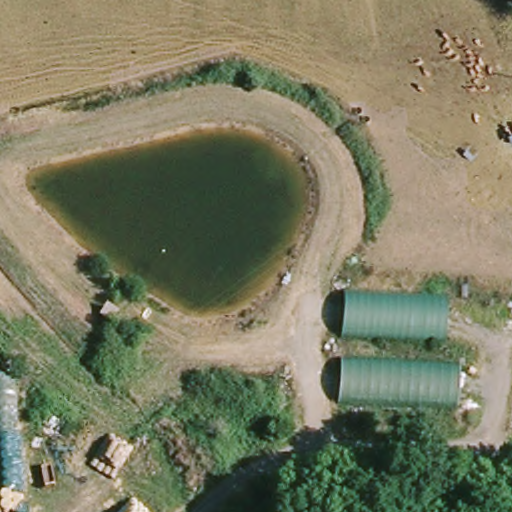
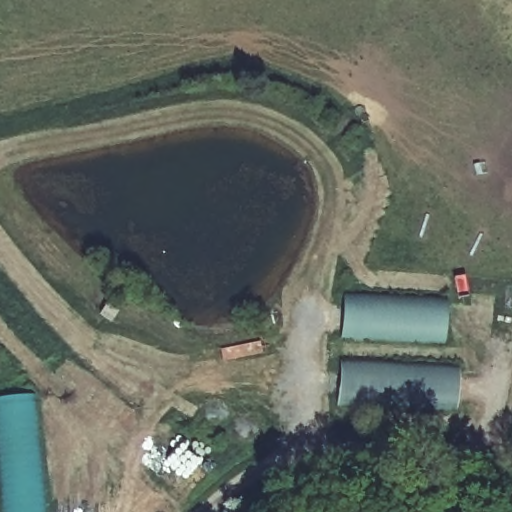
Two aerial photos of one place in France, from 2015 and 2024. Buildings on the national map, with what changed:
unchanged [(343,295),(445,300),(445,343),(342,337),(343,295)]
unchanged [(335,407),(338,365),(460,368),(457,414),(335,407)]
new [(0,470),(0,399),(33,395),(47,512),(3,512),(0,470)]

